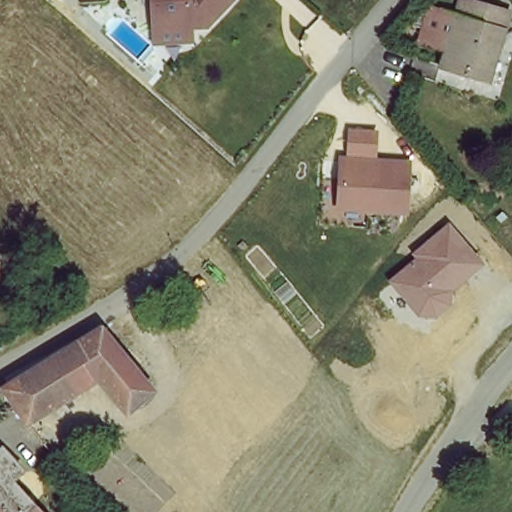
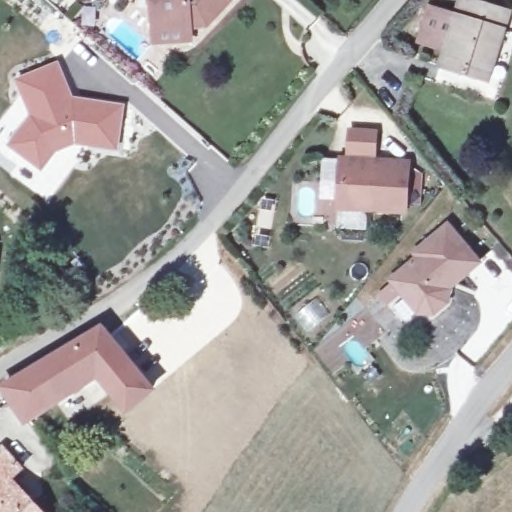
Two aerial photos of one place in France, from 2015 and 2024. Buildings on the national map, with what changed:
unchanged [(150,33),(147,0),(226,0),(199,29),(150,33)]
unchanged [(441,64),(445,53),(458,12),(462,0),(476,0),(512,11),(500,49),(490,80),(484,78),(441,64)]
unchanged [(445,53),(416,44),(428,4),(458,12),(445,53)]
new [(56,66),(70,100),(122,108),(115,148),(75,142),(53,152),(42,169),(10,146),(32,117),(18,81),(56,66)]
unchanged [(409,219),(334,212),(340,154),(414,162),(409,219)]
unchanged [(415,258),(411,253),(448,221),(483,263),(452,290),(451,302),(437,316),(419,316),(389,280),(415,258)]
unchanged [(128,410),(90,367),(30,409),(5,385),(8,383),(23,374),(70,344),(101,324),(105,328),(145,375),(155,388),(128,410)]
unchanged [(3,480),(32,512),(0,512),(0,456),(14,470),(3,480)]

